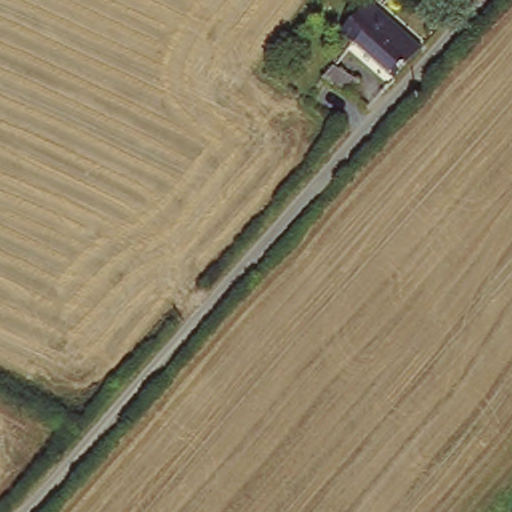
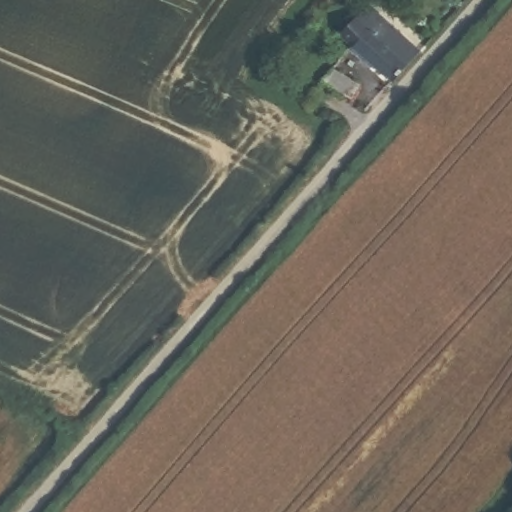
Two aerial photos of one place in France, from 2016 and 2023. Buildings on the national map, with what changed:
unchanged [(342,31),(359,10),(371,20),(379,11),(424,49),(414,60),(399,78),(353,40),(342,31)]
unchanged [(335,56),(364,73),(353,88),(325,68),(335,56)]

